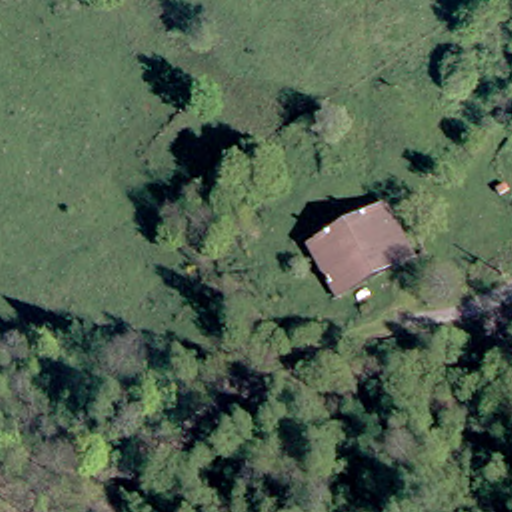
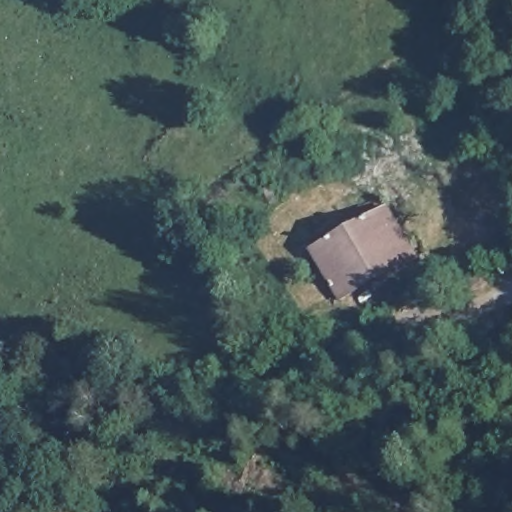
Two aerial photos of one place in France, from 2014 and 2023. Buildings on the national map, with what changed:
unchanged [(407,255),(332,299),(301,247),(376,204),(387,223),(407,255)]

